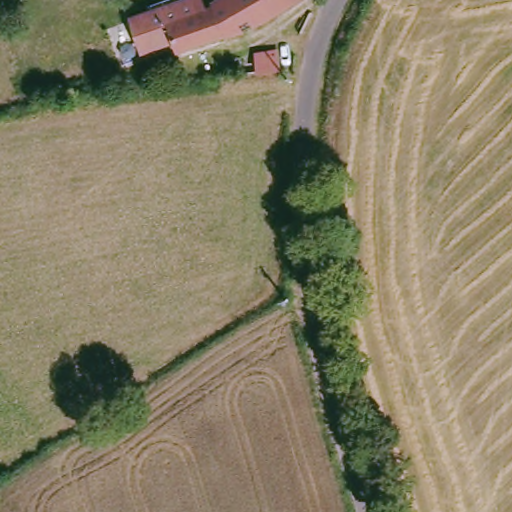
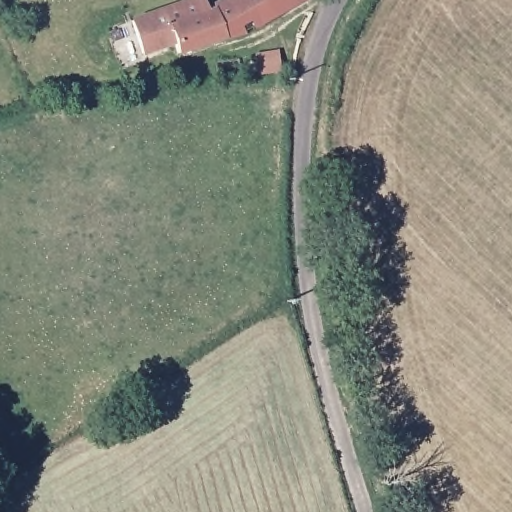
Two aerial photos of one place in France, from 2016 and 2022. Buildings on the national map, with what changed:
unchanged [(204,0),(205,0),(212,12),(230,0),(308,0),(241,35),(179,57),(175,47),(143,59),(133,26),(204,0)]
unchanged [(133,26),(143,59),(106,71),(91,31),(130,16),(133,26)]

